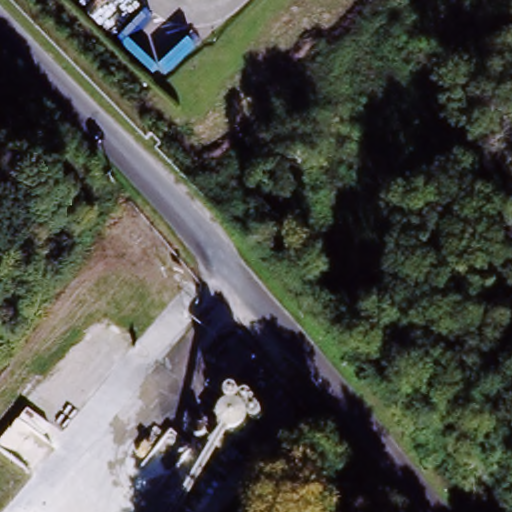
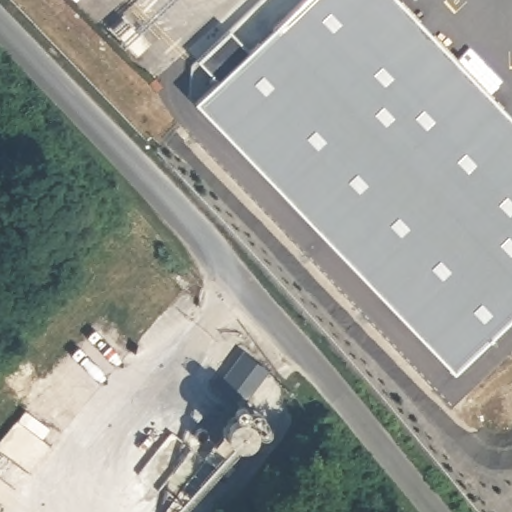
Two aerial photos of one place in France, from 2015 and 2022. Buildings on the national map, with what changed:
new [(416,354),(194,101),(217,80),(197,59),(229,29),(249,49),(301,0),(399,0),(512,116),(512,314),(454,373),(416,354)]
unchanged [(224,382),(249,349),(269,364),(244,397),(224,382)]
unchanged [(270,416),(270,419),(267,423),(265,423),(262,424),(259,421),(257,418),(259,413),(256,413),(251,411),(249,407),(250,403),(254,401),(257,401),(261,403),(262,406),(262,411),(267,412),(270,416)]
unchanged [(234,446),(225,457),(205,441),(213,430),(234,446)]
unchanged [(186,509),(184,512),(162,512),(161,512),(172,498),(186,509)]

